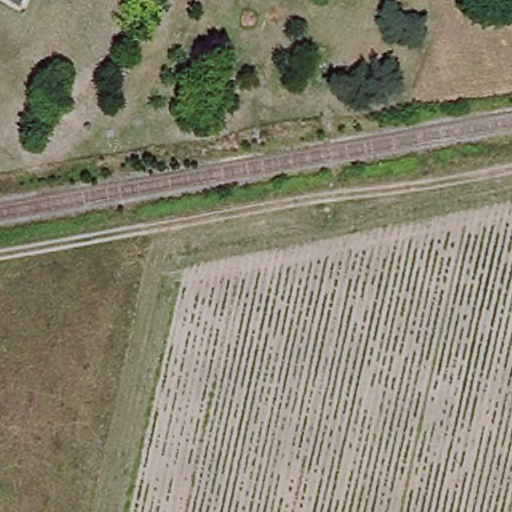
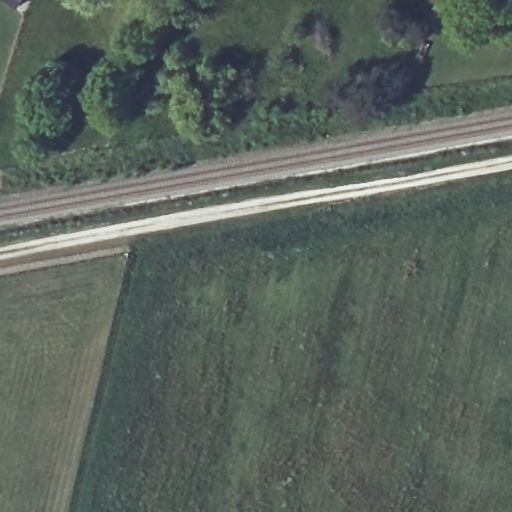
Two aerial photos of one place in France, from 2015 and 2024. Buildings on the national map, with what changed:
[]

